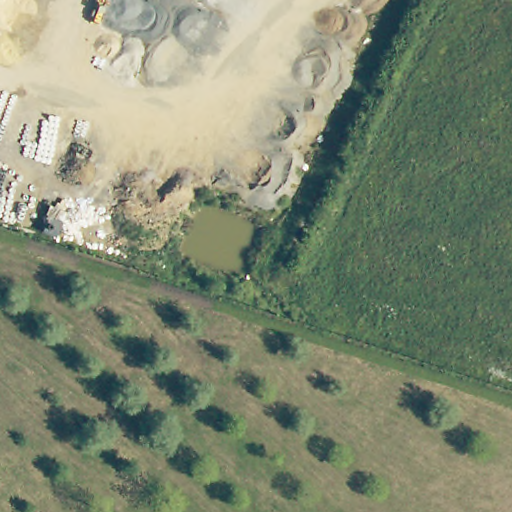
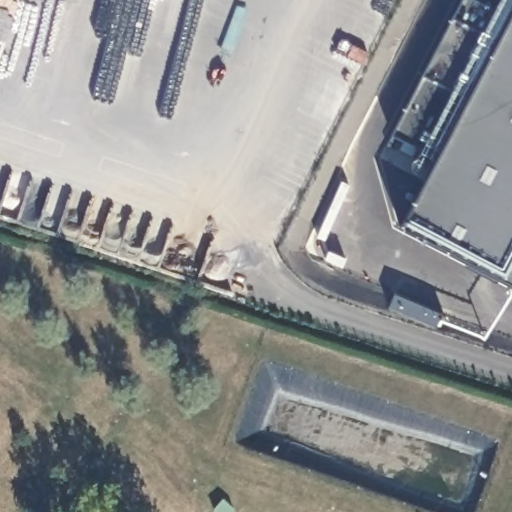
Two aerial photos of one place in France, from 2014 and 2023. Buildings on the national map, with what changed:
new [(512,9),(512,282),(400,224),(512,9)]

